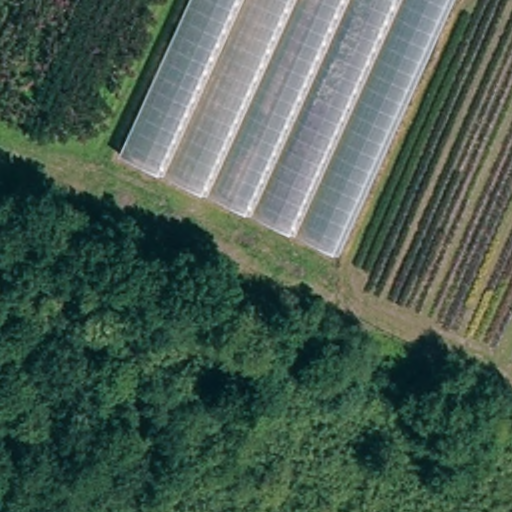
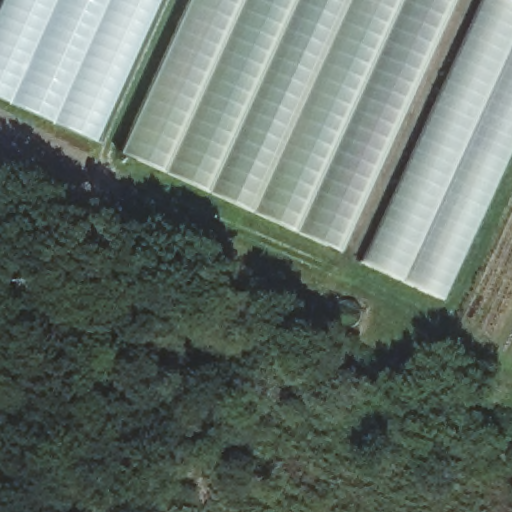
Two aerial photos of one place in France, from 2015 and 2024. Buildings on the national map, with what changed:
new [(95,141),(51,122),(0,99),(0,0),(159,0),(95,141)]
unchanged [(337,252),(120,151),(190,0),(454,0),(337,252)]
new [(512,1),(512,138),(438,300),(356,262),(476,0),(510,0),(512,1)]

